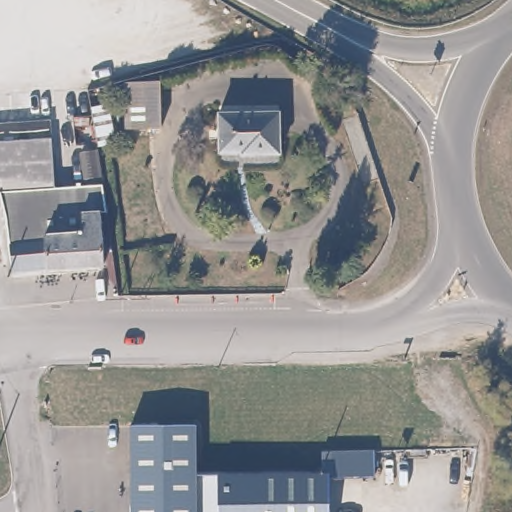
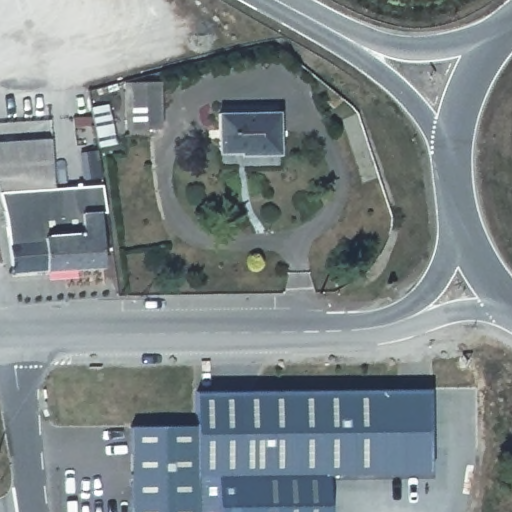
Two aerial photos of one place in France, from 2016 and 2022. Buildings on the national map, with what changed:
unchanged [(125,78),(158,77),(158,84),(158,126),(125,127),(125,95),(125,78)]
unchanged [(118,144),(97,147),(90,106),(111,104),(118,144)]
unchanged [(280,156),(221,156),(217,112),(277,110),(280,156)]
unchanged [(46,137),(40,138),(43,167),(0,173),(0,146),(26,142),(25,126),(45,124),(46,137)]
unchanged [(4,188),(49,186),(98,182),(100,194),(102,213),(95,213),(97,265),(49,269),(13,271),(10,212),(4,188)]
new [(316,473),(306,473),(191,472),(191,423),(191,390),(429,389),(430,474),(321,476),(316,473)]
unchanged [(126,512),(126,422),(140,422),(171,422),(191,423),(191,472),(191,512),(126,512)]
unchanged [(316,473),(321,476),(322,512),(191,512),(191,472),(306,473),(316,473)]

